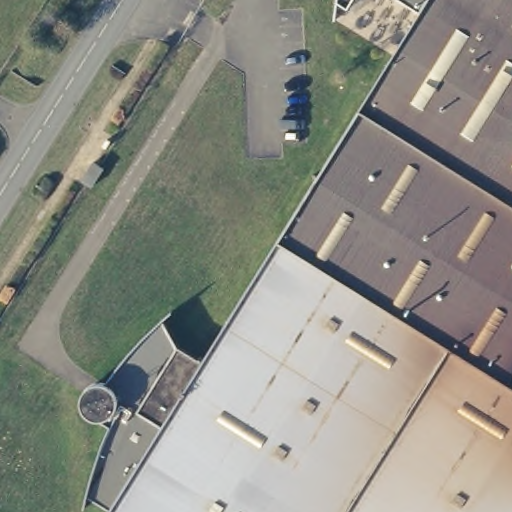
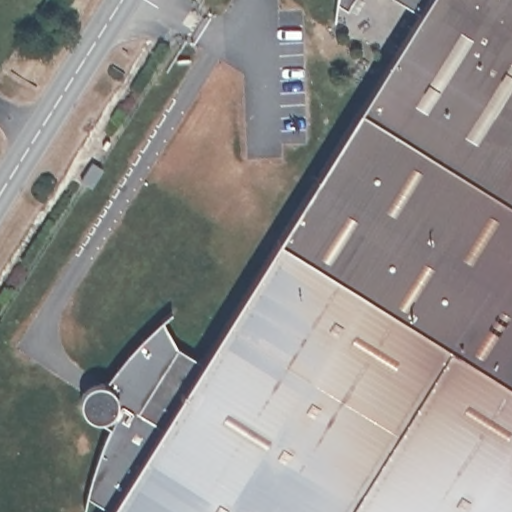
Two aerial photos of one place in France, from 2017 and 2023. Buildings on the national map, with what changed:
unchanged [(342,18),(331,12),(333,4),(334,0),(354,0),(342,18)]
unchanged [(355,118),(415,22),(378,0),(512,0),(512,216),(355,118)]
unchanged [(202,364),(355,118),(512,216),(512,512),(86,512),(83,509),(98,454),(109,426),(93,418),(85,410),(81,398),(84,389),(90,384),(101,383),(127,354),(162,319),(176,345),(202,364)]
unchanged [(103,169),(92,186),(81,180),(93,162),(103,169)]

